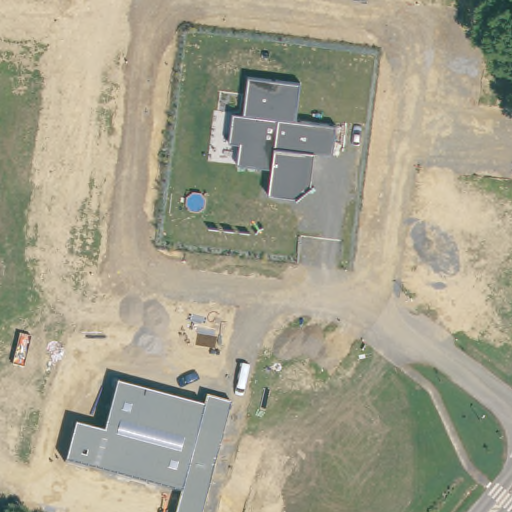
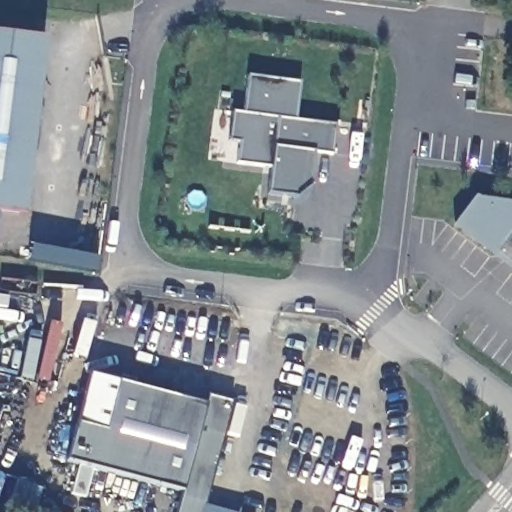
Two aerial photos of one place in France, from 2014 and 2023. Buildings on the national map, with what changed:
new [(45,33),(22,211),(0,209),(0,28),(45,33)]
unchanged [(300,83),(295,120),(335,126),(331,153),(314,152),(310,187),(296,198),(269,193),(271,167),(237,163),(240,143),(229,142),(233,114),(244,115),(248,76),(300,83)]
new [(473,196),(512,203),(512,273),(449,226),(473,196)]
unchanged [(181,491),(67,462),(90,376),(204,406),(208,396),(231,402),(202,512),(176,512),(181,491)]

